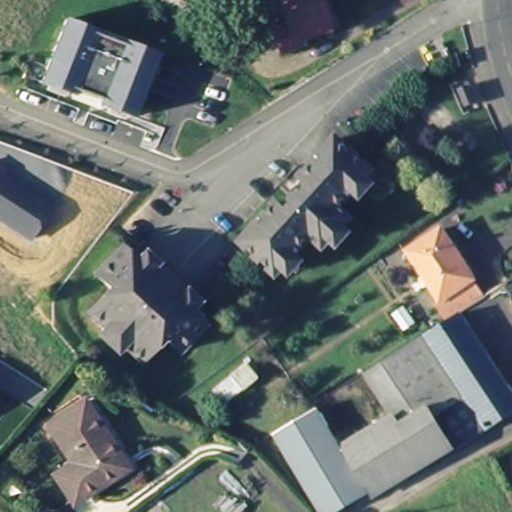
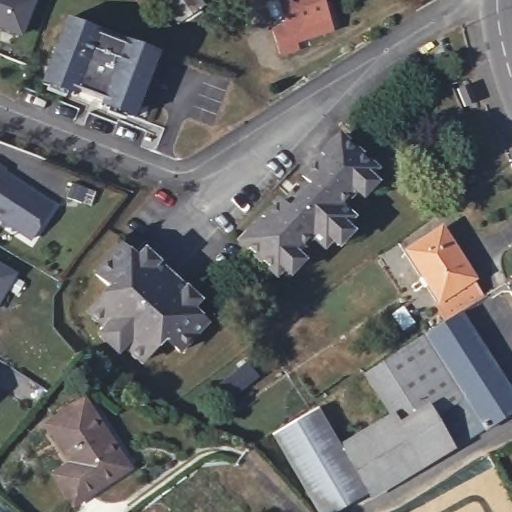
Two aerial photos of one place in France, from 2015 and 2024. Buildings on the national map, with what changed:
new [(0,20),(0,0),(37,0),(25,30),(0,20)]
unchanged [(181,26),(162,0),(199,0),(206,10),(181,26)]
unchanged [(283,0),(324,0),(333,29),(297,41),(301,50),(287,55),(278,30),(292,25),(283,0)]
unchanged [(71,17),(102,30),(100,35),(127,46),(129,41),(160,54),(136,115),(105,102),(106,97),(79,86),(77,91),(46,79),(71,17)]
unchanged [(476,79),(482,97),(471,100),(466,82),(476,79)]
unchanged [(297,275),(290,269),(283,275),(249,245),(345,140),(378,170),(373,176),(381,183),(368,196),(361,190),(346,207),(357,219),(351,225),(358,232),(346,245),(338,239),(331,247),(318,237),(301,256),(307,261),(297,275)]
unchanged [(32,242),(0,221),(0,167),(57,205),(32,242)]
unchanged [(440,300),(442,299),(411,249),(445,227),(476,277),(473,278),(485,296),(460,313),(452,318),(440,300)]
unchanged [(104,337),(110,331),(92,314),(114,290),(101,277),(126,250),(140,262),(146,256),(162,270),(167,265),(187,285),(182,290),(199,305),(193,312),(207,326),(182,354),(167,340),(145,365),(127,348),(120,354),(104,337)]
new [(0,304),(0,264),(18,274),(0,304)]
unchanged [(512,279),(512,296),(505,284),(512,279)]
unchanged [(442,324),(452,318),(460,313),(512,393),(512,413),(486,431),(470,441),(425,469),(424,468),(412,450),(392,421),(362,376),(442,324)]
unchanged [(75,462),(51,423),(84,400),(107,433),(104,435),(126,470),(92,491),(91,489),(73,500),(57,475),(75,462)]
unchanged [(275,434),(317,406),(364,478),(367,482),(325,510),(321,505),(275,434)]
unchanged [(346,448),(392,421),(412,450),(424,468),(376,496),(367,482),(364,478),(346,448)]

